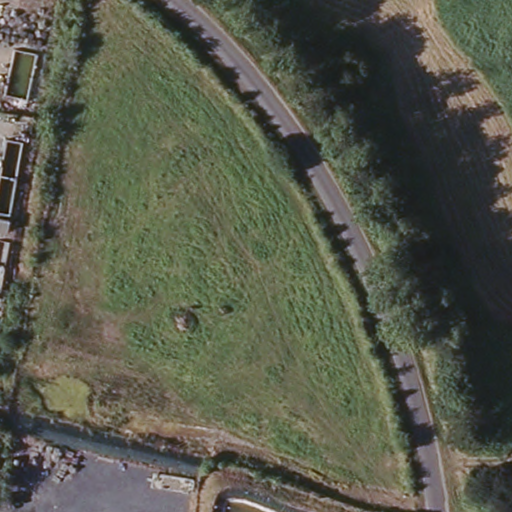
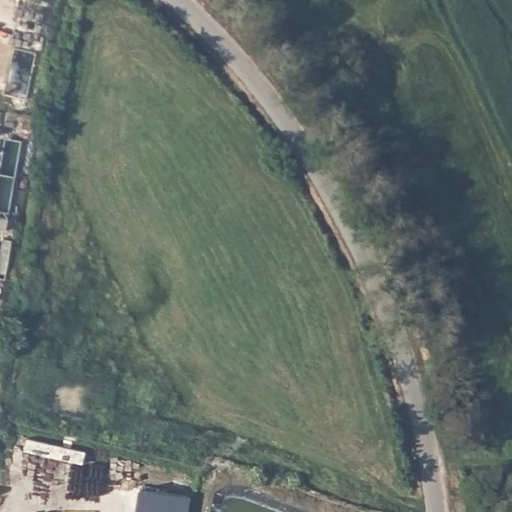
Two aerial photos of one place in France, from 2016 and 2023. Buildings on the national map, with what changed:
new [(189,512),(138,512),(142,489),(191,497),(189,512)]

